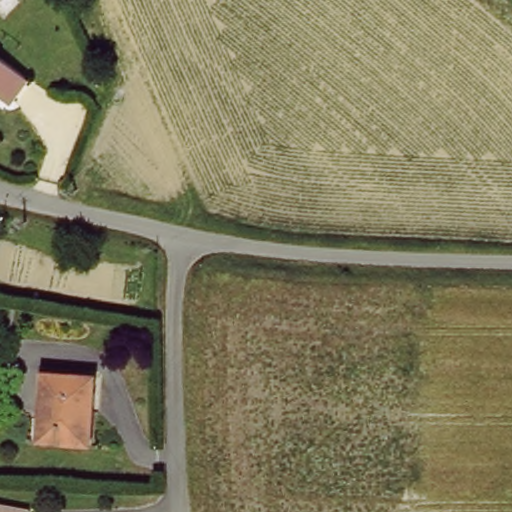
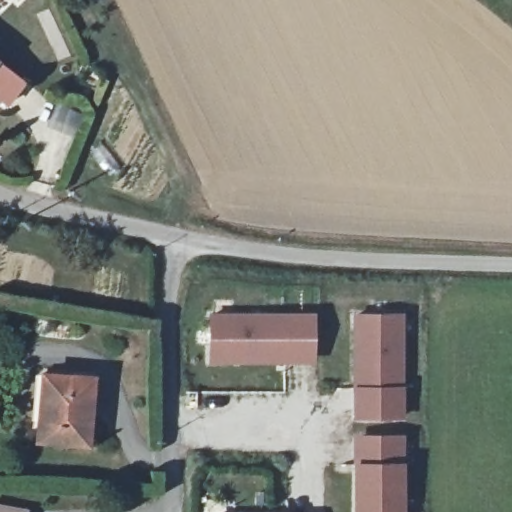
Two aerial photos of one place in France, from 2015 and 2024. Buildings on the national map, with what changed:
unchanged [(24,80),(7,103),(0,98),(0,62),(24,80)]
new [(361,310),(406,310),(406,412),(366,412),(366,385),(361,385),(361,310)]
new [(216,311),(318,311),(318,350),(291,351),(290,356),(216,356),(216,311)]
unchanged [(45,368),(97,372),(92,437),(41,435),(45,368)]
new [(366,460),(366,432),(406,432),(406,512),(361,512),(361,460),(366,460)]
unchanged [(25,508),(24,512),(0,512),(0,504),(25,508)]

